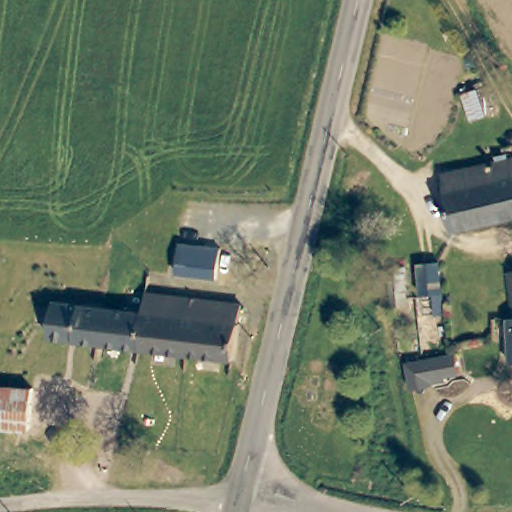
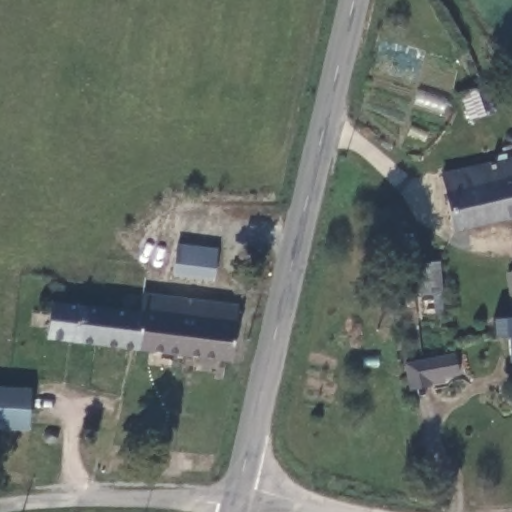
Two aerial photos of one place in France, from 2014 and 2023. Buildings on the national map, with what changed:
unchanged [(480,87),(489,110),(468,118),(460,94),(480,87)]
unchanged [(443,176),(512,159),(512,219),(457,232),(443,176)]
unchanged [(216,258),(214,280),(177,276),(174,275),(176,252),(216,256),(216,258)]
unchanged [(442,263),(445,290),(426,292),(422,266),(442,263)]
unchanged [(512,273),(512,291),(510,273),(512,273)]
unchanged [(142,296),(237,307),(234,329),(250,331),(243,359),(231,357),(231,361),(136,350),(140,313),(142,296)]
unchanged [(47,339),(52,304),(140,313),(136,350),(47,339)]
unchanged [(508,320),(512,320),(512,362),(511,362),(508,320)]
unchanged [(452,357),(454,377),(421,381),(419,361),(452,357)]
unchanged [(415,362),(418,383),(404,385),(402,363),(415,362)]
unchanged [(28,389),(26,431),(0,430),(0,388),(28,389)]
unchanged [(40,435),(42,431),(46,429),(49,428),(53,429),(56,431),(58,435),(59,439),(55,445),(52,446),(48,447),(44,445),(42,443),(40,439),(40,435)]

